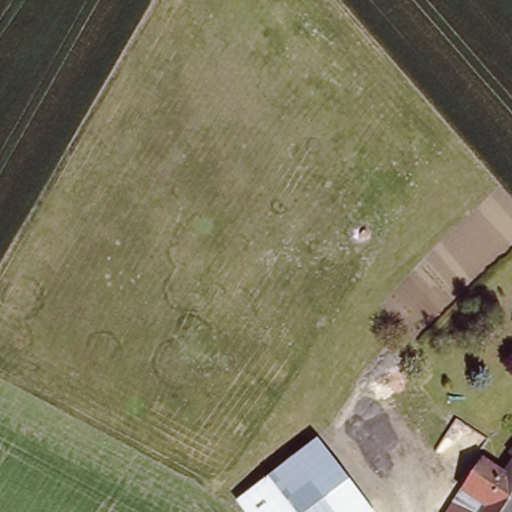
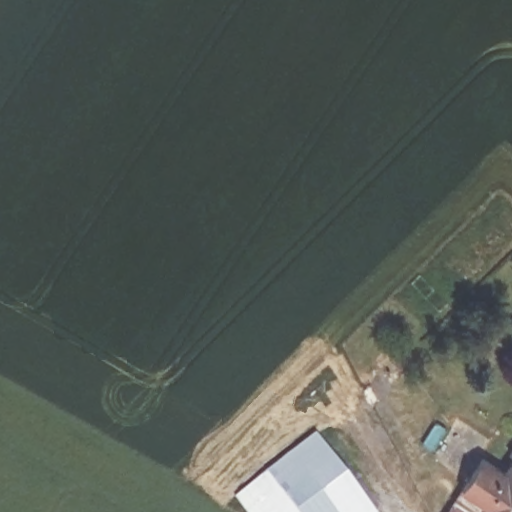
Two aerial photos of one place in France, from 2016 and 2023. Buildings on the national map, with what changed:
unchanged [(312,512),(245,512),(241,507),(238,503),(313,440),(324,454),(288,482),(312,512)]
unchanged [(312,512),(288,482),(324,454),(372,512),(312,512)]
unchanged [(464,489),(483,457),(507,472),(512,463),(512,512),(481,512),(487,503),(464,489)]
unchanged [(475,512),(451,512),(458,501),(475,512)]

